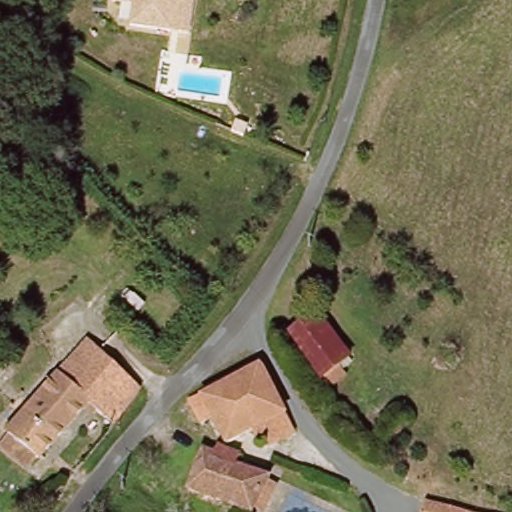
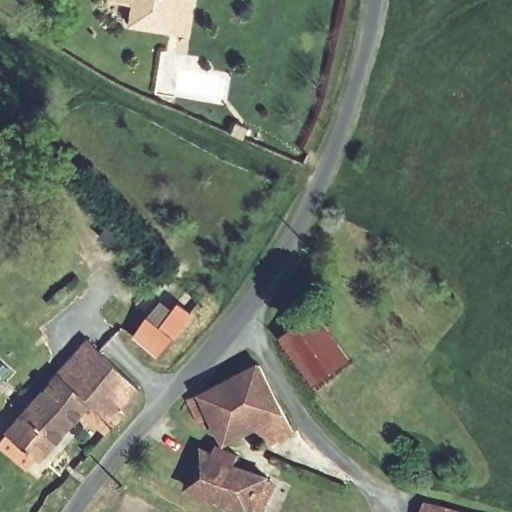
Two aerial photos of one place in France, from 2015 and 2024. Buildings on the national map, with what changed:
unchanged [(194,36),(177,33),(135,28),(139,6),(118,3),(118,0),(200,0),(194,36)]
new [(177,300),(192,313),(174,336),(172,335),(158,355),(132,334),(146,314),(159,324),(177,300)]
unchanged [(285,335),(318,313),(350,359),(318,381),(285,335)]
unchanged [(0,445),(9,435),(8,433),(9,432),(4,428),(4,427),(17,412),(18,412),(23,416),(90,337),(90,338),(140,387),(112,420),(89,399),(38,459),(35,458),(28,467),(0,445)]
unchanged [(254,429),(227,443),(213,416),(202,421),(189,396),(202,393),(262,365),(299,429),(272,444),(268,436),(260,440),(254,429)]
unchanged [(202,453),(217,458),(221,447),(239,455),(235,464),(267,476),(249,510),(186,489),(202,453)]
unchanged [(443,512),(419,512),(421,504),(443,512)]

